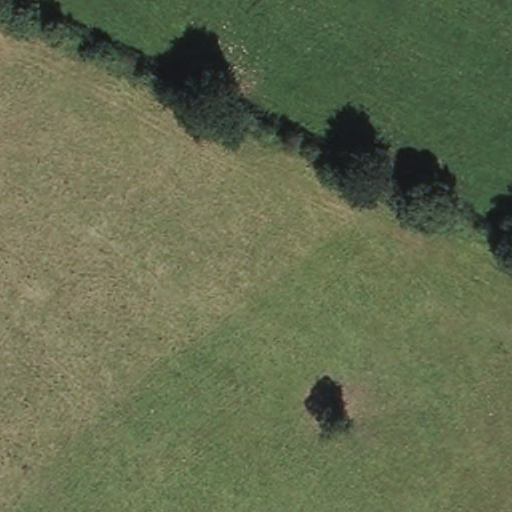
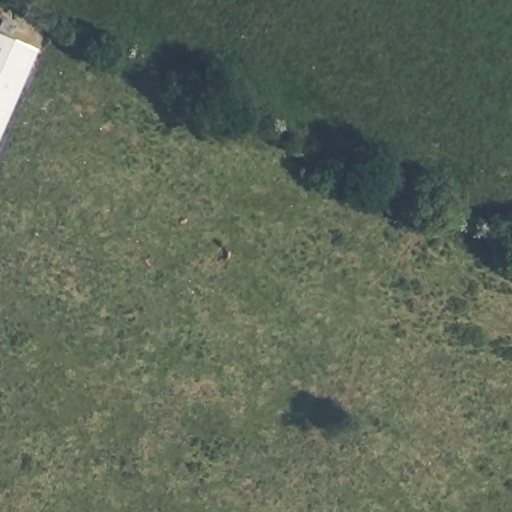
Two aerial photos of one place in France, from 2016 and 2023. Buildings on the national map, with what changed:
new [(0,124),(0,34),(33,49),(0,124)]

